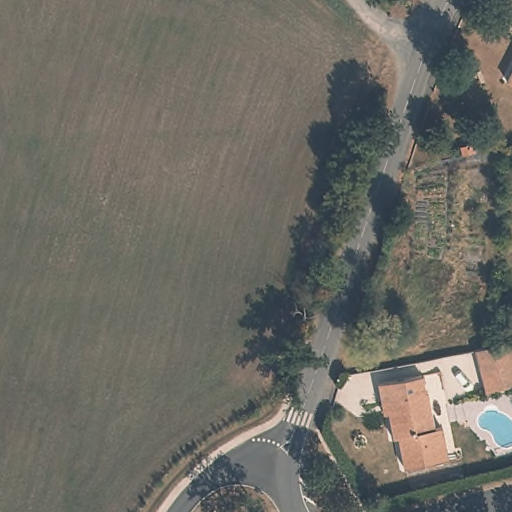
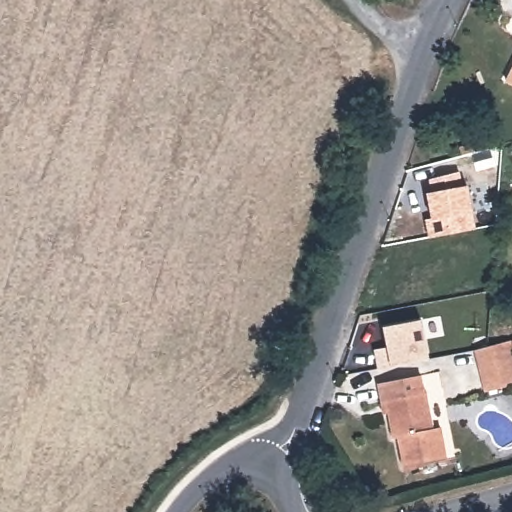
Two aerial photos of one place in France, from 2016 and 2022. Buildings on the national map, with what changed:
unchanged [(506,76),(512,65),(512,79),(506,76)]
new [(424,220),(428,219),(425,194),(432,192),(430,178),(458,172),(461,186),(467,185),(472,211),(475,229),(428,239),(424,220)]
new [(421,320),(427,357),(390,365),(377,368),(373,351),(385,349),(382,328),(421,320)]
unchanged [(494,386),(483,345),(497,341),(512,337),(512,381),(494,386)]
unchanged [(423,373),(426,392),(429,392),(435,426),(441,425),(448,458),(404,465),(398,437),(394,437),(389,411),(384,412),(382,401),(379,382),(423,373)]

